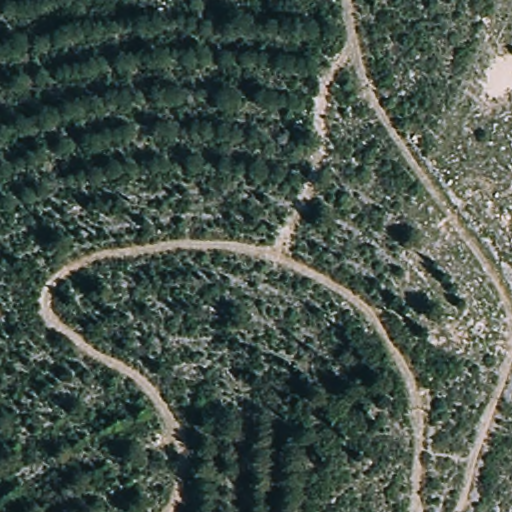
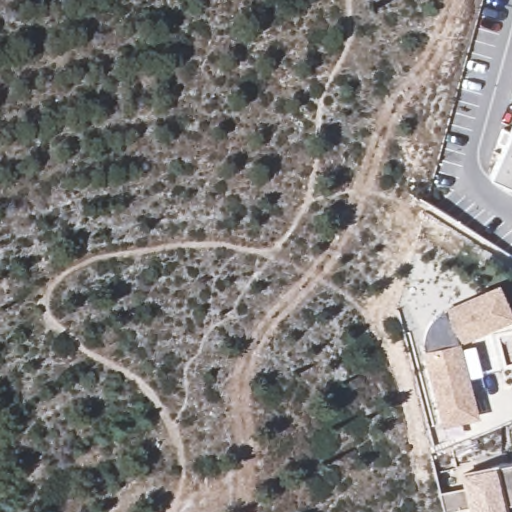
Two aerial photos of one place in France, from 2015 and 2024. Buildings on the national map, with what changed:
new [(490,175),(503,146),(497,142),(503,129),(510,130),(512,126),(512,185),(490,175)]
new [(480,418),(444,428),(423,352),(423,344),(427,331),(433,319),(444,309),(499,284),(512,311),(512,320),(460,344),(480,418)]
new [(505,504),(507,512),(471,512),(462,474),(495,466),(512,462),(512,502),(505,504)]
new [(505,504),(512,502),(512,512),(507,512),(505,504)]

